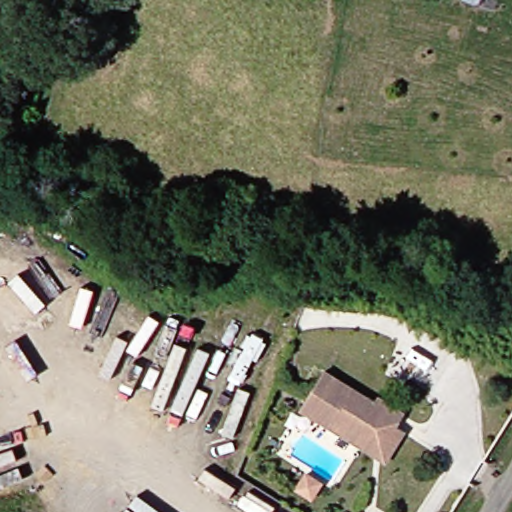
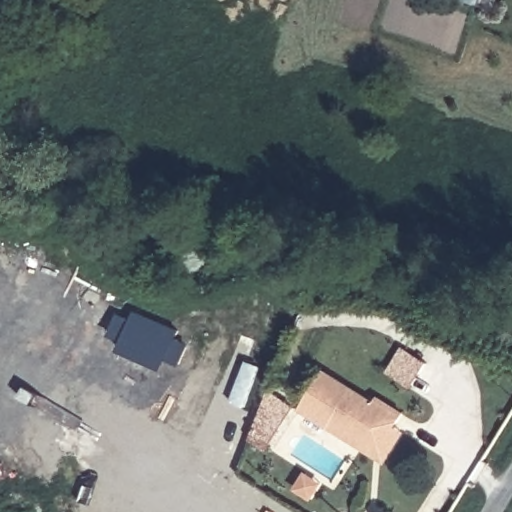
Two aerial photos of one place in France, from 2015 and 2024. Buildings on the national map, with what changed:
new [(175,339),(189,345),(181,367),(167,361),(164,370),(118,351),(121,342),(109,338),(118,312),(131,319),(135,310),(180,331),(175,339)]
unchanged [(387,459),(332,423),(303,405),(326,367),(379,400),(382,395),(407,410),(399,425),(407,428),(387,459)]
new [(268,451),(248,440),(269,390),(297,407),(268,451)]

